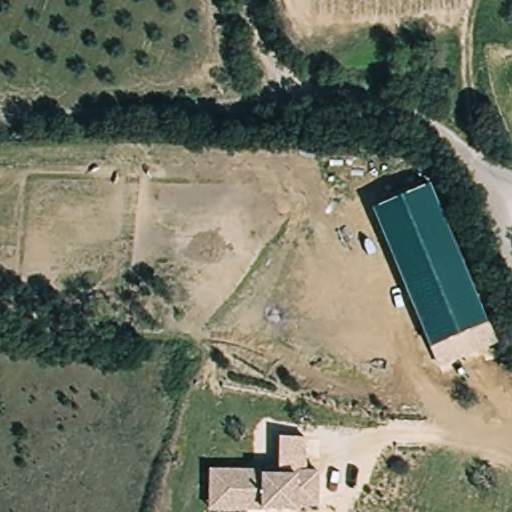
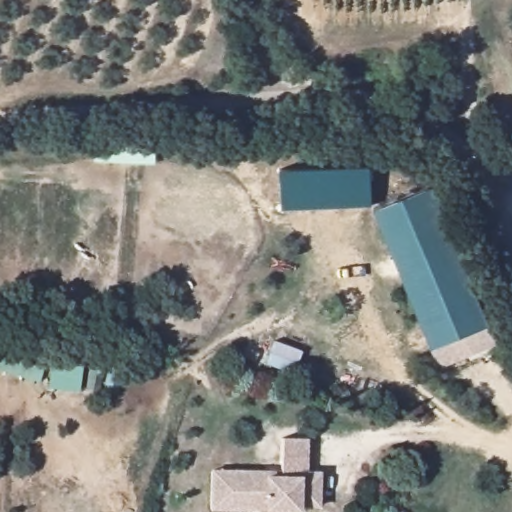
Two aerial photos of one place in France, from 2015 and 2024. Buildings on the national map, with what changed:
new [(283,211),(281,169),(369,166),(372,204),(283,211)]
unchanged [(375,209),(434,186),(492,323),(498,344),(442,367),(432,347),(375,209)]
unchanged [(310,471),(321,471),(321,506),(300,504),(300,511),(266,510),(211,511),(212,470),(281,465),(283,437),(308,438),(310,471)]

